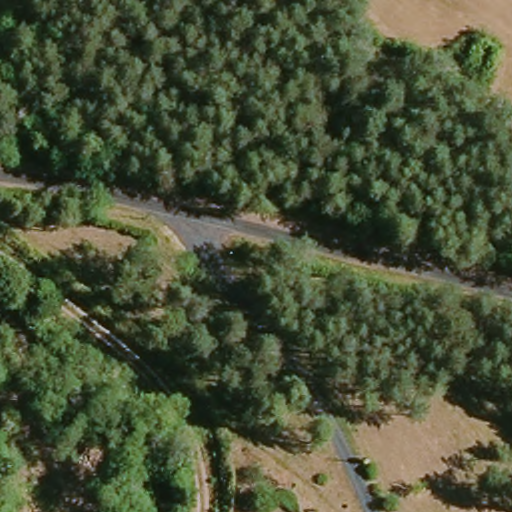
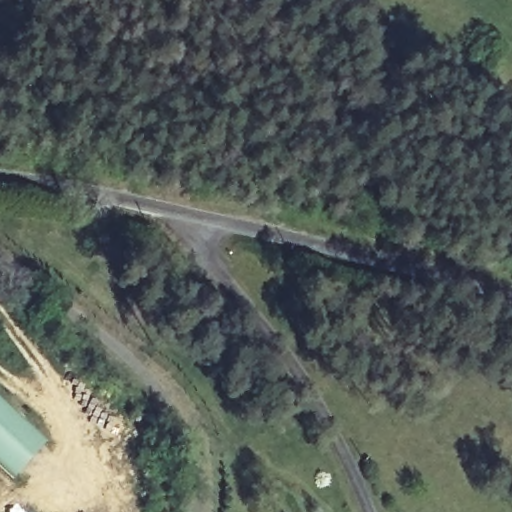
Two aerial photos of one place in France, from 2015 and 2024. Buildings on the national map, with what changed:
unchanged [(507,66),(494,84),(475,66),(487,50),(507,66)]
new [(16,478),(0,463),(0,394),(50,441),(16,478)]

